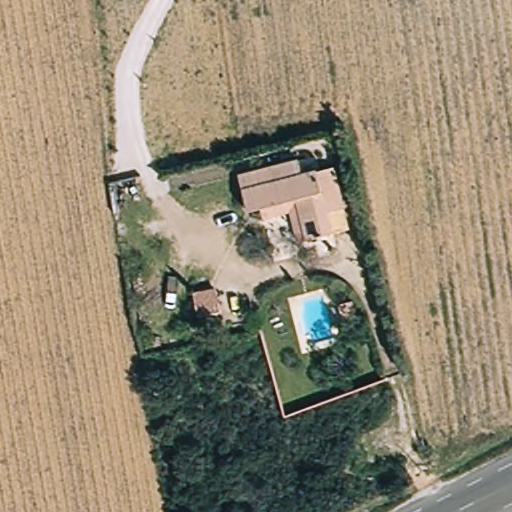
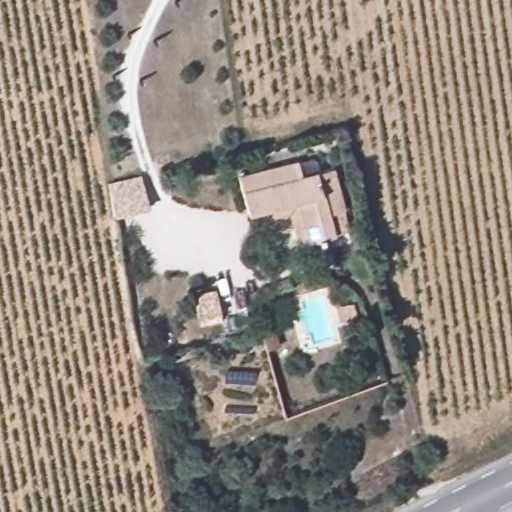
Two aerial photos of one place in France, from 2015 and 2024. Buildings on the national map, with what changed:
unchanged [(293,209),(263,217),(260,203),(252,205),(242,171),(302,156),(306,170),(337,162),(347,206),(307,215),(297,218),(293,209)]
new [(141,176),(148,208),(115,217),(110,184),(141,176)]

